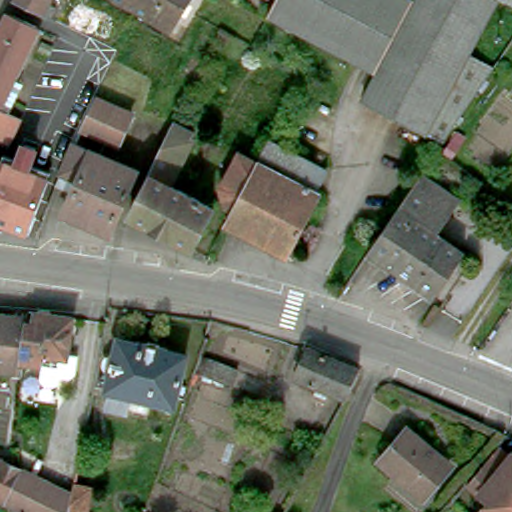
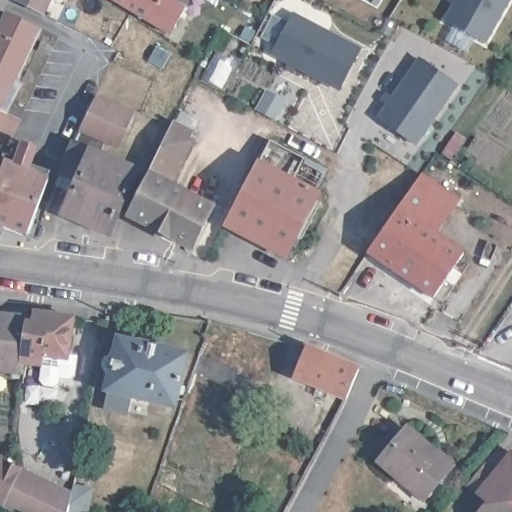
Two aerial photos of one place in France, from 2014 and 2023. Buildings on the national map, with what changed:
unchanged [(45,15),(17,1),(18,0),(52,0),(50,5),(57,9),(52,19),(45,15)]
unchanged [(112,0),(189,0),(169,34),(112,0)]
demolished [(497,71),(447,145),(368,103),(383,75),(272,18),(282,0),(505,0),(473,59),(497,71)]
new [(450,0),(512,0),(487,45),(445,21),(452,6),(447,4),(450,0)]
demolished [(512,0),(512,4),(505,0),(512,0)]
new [(293,74),(283,68),(287,64),(271,55),(292,13),(362,49),(340,91),(297,69),(293,74)]
unchanged [(40,33),(10,99),(3,111),(0,110),(0,47),(13,21),(40,33)]
new [(420,58),(459,86),(417,146),(375,118),(385,106),(381,102),(388,94),(392,96),(420,58)]
unchanged [(87,125),(99,101),(102,95),(138,111),(124,141),(120,140),(110,136),(87,125)]
unchanged [(10,99),(17,103),(12,114),(22,118),(2,161),(0,169),(0,119),(3,111),(10,99)]
unchanged [(3,111),(0,119),(0,110),(3,111)]
unchanged [(110,136),(103,151),(142,167),(114,230),(70,210),(84,176),(68,169),(70,166),(87,125),(110,136)]
unchanged [(196,143),(176,188),(217,210),(197,250),(135,220),(157,178),(152,176),(174,133),(196,143)]
unchanged [(319,194),(324,197),(290,259),(232,227),(241,209),(237,206),(230,191),(248,156),(264,165),(276,143),(331,172),(319,194)]
unchanged [(55,181),(32,236),(7,226),(4,228),(0,228),(0,169),(2,161),(55,181)]
unchanged [(463,202),(440,234),(470,253),(438,299),(373,254),(425,176),(463,202)]
unchanged [(30,311),(74,318),(68,355),(77,356),(75,377),(70,381),(59,379),(58,385),(53,389),(42,387),(38,382),(40,365),(23,363),(22,363),(29,318),(30,311)]
unchanged [(13,373),(0,371),(0,315),(29,318),(22,363),(23,363),(22,373),(22,378),(13,376),(13,373)]
unchanged [(112,389),(125,339),(147,345),(147,343),(168,347),(168,350),(191,356),(178,405),(155,400),(113,390),(112,389)]
unchanged [(315,394),(318,387),(297,378),(309,346),(360,369),(345,398),(331,392),(328,399),(315,394)]
unchanged [(237,370),(232,385),(193,371),(198,357),(237,370)]
unchanged [(440,452),(437,455),(455,470),(430,500),(425,496),(423,499),(415,491),(417,489),(385,461),(412,428),(440,452)]
unchanged [(512,512),(486,512),(493,503),(472,486),(505,447),(512,452),(512,512)]
unchanged [(0,496),(0,455),(20,464),(17,470),(2,498),(0,496)]
unchanged [(24,508),(2,498),(17,470),(20,464),(71,489),(66,512),(22,512),(24,508)]
unchanged [(92,484),(87,512),(66,512),(71,489),(73,480),(92,484)]

